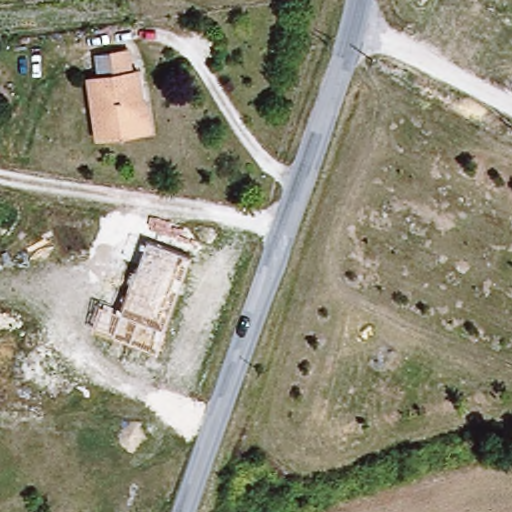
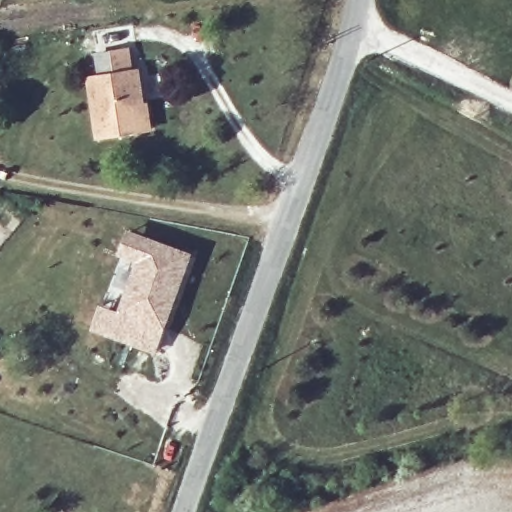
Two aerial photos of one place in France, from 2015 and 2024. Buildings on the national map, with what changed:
unchanged [(155,128),(140,129),(96,132),(91,74),(112,71),(111,46),(130,45),(132,70),(141,69),(144,102),(152,101),(155,128)]
new [(157,353),(92,331),(102,304),(121,310),(137,263),(121,257),(129,230),(194,253),(157,353)]

